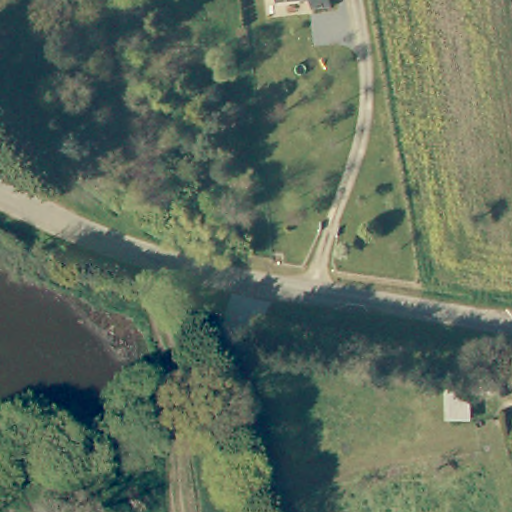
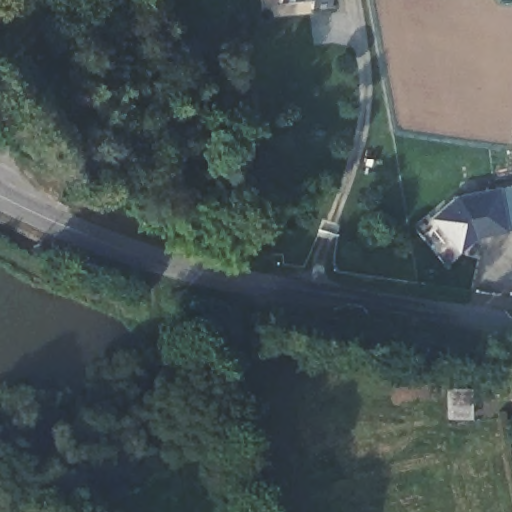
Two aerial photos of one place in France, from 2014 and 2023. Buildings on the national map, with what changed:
unchanged [(317,0),(331,0),(317,1),(317,0)]
new [(457,195),(501,186),(502,189),(512,187),(512,229),(475,237),(456,252),(429,218),(457,195)]

